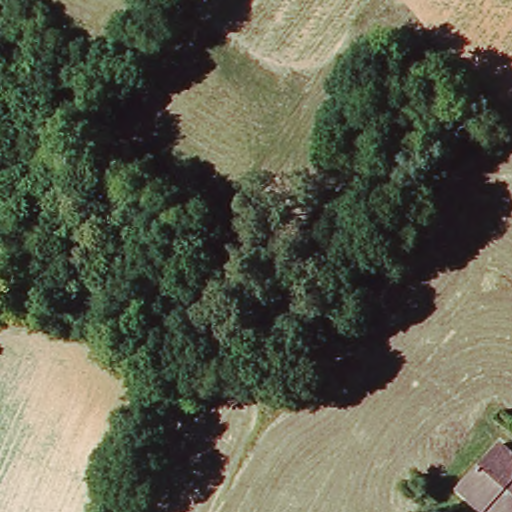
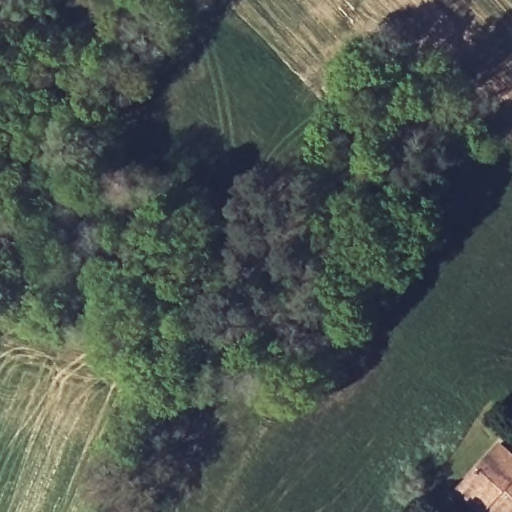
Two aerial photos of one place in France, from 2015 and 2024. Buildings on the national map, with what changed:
unchanged [(500,444),(512,456),(512,512),(481,512),(457,488),(500,444)]

